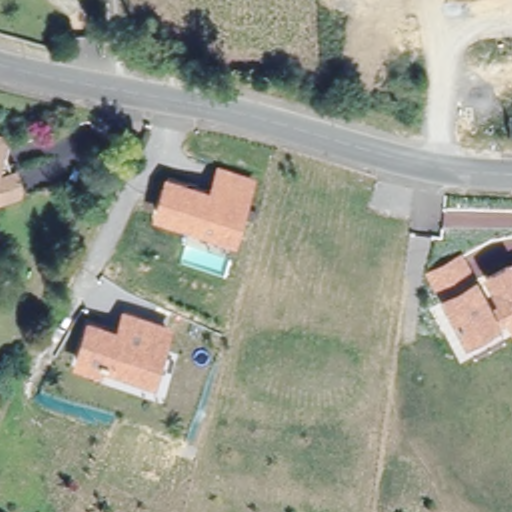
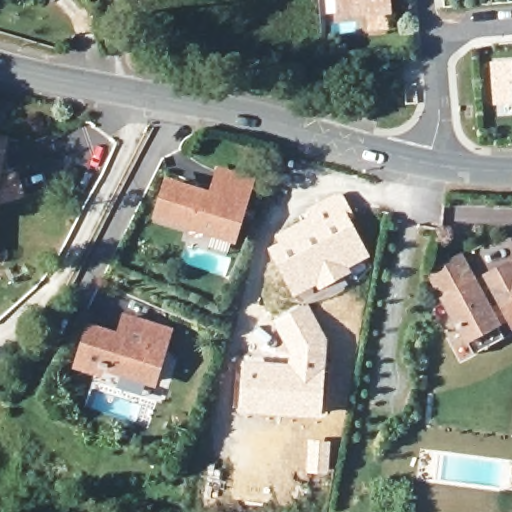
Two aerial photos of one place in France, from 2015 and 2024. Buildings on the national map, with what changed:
unchanged [(338,16),(337,0),(387,0),(388,12),(338,16)]
unchanged [(512,64),(512,102),(496,103),(493,65),(512,64)]
unchanged [(3,174),(19,169),(27,194),(0,204),(0,135),(9,136),(3,174)]
unchanged [(255,177),(235,243),(152,219),(165,175),(210,189),(218,163),(255,177)]
new [(277,240),(273,234),(312,205),(339,190),(352,212),(349,214),(371,256),(350,268),(352,272),(317,291),(315,287),(293,298),(266,248),(277,240)]
unchanged [(511,332),(506,322),(498,325),(504,335),(473,351),(468,344),(466,346),(427,270),(463,250),(478,275),(475,278),(490,303),(495,299),(482,273),(512,258),(512,331),(511,332)]
new [(242,357),(287,361),(286,348),(272,320),(308,303),(327,339),(322,418),(237,414),(242,357)]
unchanged [(174,326),(156,386),(104,372),(102,378),(74,369),(87,322),(117,330),(123,310),(174,326)]
new [(307,439),(331,441),(329,474),(306,472),(307,439)]

